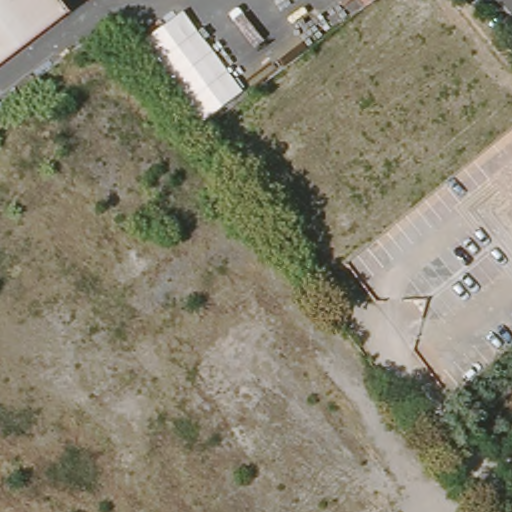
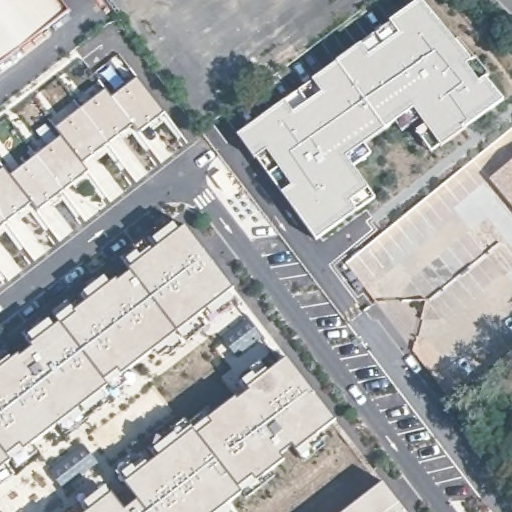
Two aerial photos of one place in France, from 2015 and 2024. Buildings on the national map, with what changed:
unchanged [(0,70),(0,0),(63,0),(71,11),(0,70)]
new [(421,0),(503,101),(440,147),(430,152),(414,129),(402,133),(396,123),(365,145),(371,155),(352,166),(374,200),(315,240),(239,134),(421,0)]
new [(105,89),(111,95),(136,76),(169,117),(161,123),(159,120),(138,136),(133,131),(130,133),(128,132),(85,167),(57,138),(51,131),(105,89)]
new [(47,146),(57,138),(85,167),(90,173),(50,205),(36,214),(9,176),(47,146)]
unchanged [(492,177),(512,160),(512,202),(492,177)]
new [(30,205),(0,228),(0,172),(3,170),(9,176),(30,205)]
new [(0,369),(185,228),(232,290),(0,470),(0,369)]
new [(293,445),(280,454),(285,461),(217,512),(89,512),(286,359),(334,421),(296,451),(293,445)]
new [(405,512),(345,512),(383,483),(405,512)]

